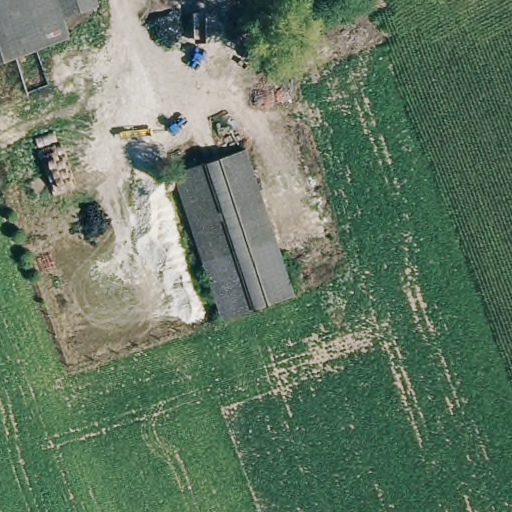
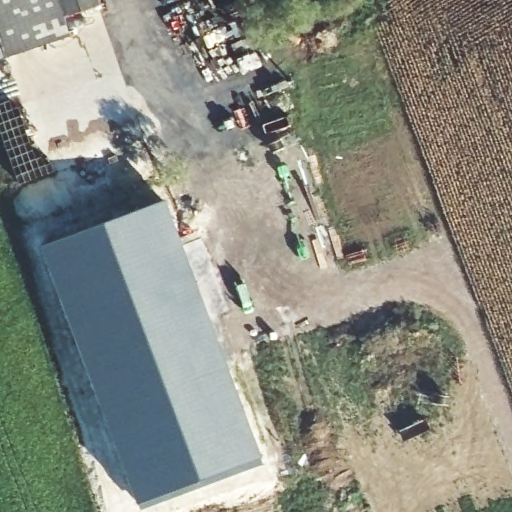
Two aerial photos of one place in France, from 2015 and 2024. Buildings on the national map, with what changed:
unchanged [(0,64),(0,0),(35,0),(39,13),(49,47),(31,53),(0,64)]
unchanged [(73,3),(39,13),(35,0),(72,0),(73,3)]
new [(73,3),(72,0),(98,0),(100,6),(77,13),(73,3)]
unchanged [(73,3),(85,36),(49,47),(39,13),(73,3)]
unchanged [(248,151),(297,299),(220,320),(172,179),(248,151)]
new [(262,454),(265,464),(140,510),(138,502),(43,245),(168,199),(262,454)]

